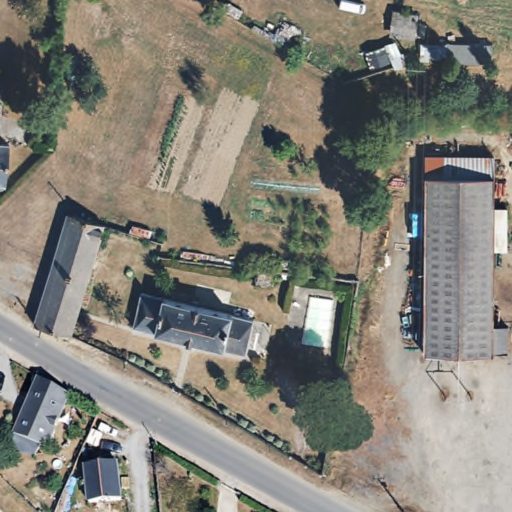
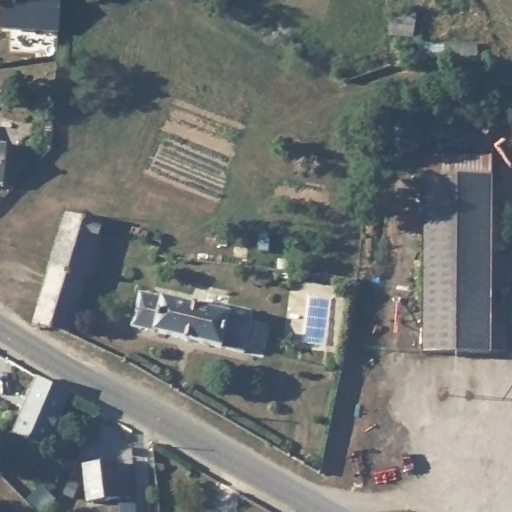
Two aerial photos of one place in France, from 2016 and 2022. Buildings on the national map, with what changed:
new [(59,34),(0,31),(0,0),(60,0),(59,34)]
unchanged [(3,184),(0,184),(0,140),(5,141),(3,184)]
unchanged [(489,152),(489,175),(420,177),(419,155),(489,152)]
unchanged [(510,352),(494,352),(426,353),(420,177),(489,175),(494,324),(509,323),(510,352)]
unchanged [(61,209),(85,216),(88,209),(102,211),(99,222),(84,277),(44,267),(61,209)]
unchanged [(252,260),(249,277),(234,275),(237,258),(252,260)]
unchanged [(84,277),(69,334),(29,322),(39,286),(44,267),(84,277)]
unchanged [(189,303),(182,337),(129,325),(134,292),(144,294),(189,303)]
unchanged [(249,316),(242,351),(182,337),(189,303),(194,304),(249,316)]
unchanged [(69,397),(44,443),(34,440),(32,444),(21,445),(9,440),(38,378),(69,397)]
unchanged [(112,458),(116,497),(86,500),(83,462),(89,461),(112,458)]

